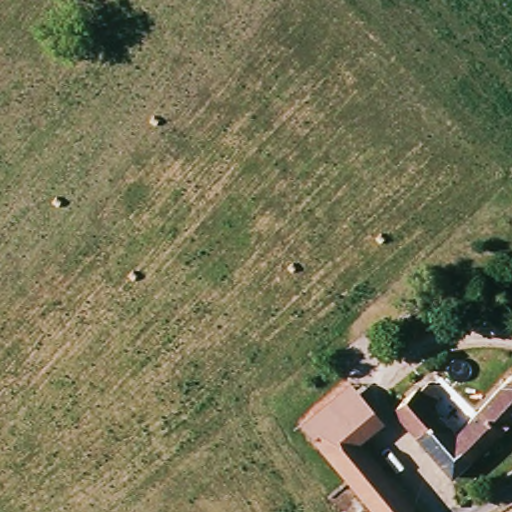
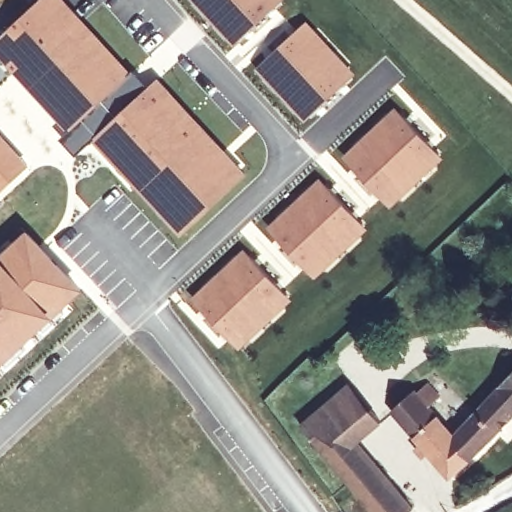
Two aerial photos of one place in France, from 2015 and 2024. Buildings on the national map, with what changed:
new [(217,139),(248,173),(181,232),(93,139),(77,155),(61,138),(69,131),(16,72),(0,56),(0,34),(38,0),(66,0),(134,71),(148,85),(158,76),(217,139)]
new [(236,43),(195,0),(284,0),(236,43)]
new [(307,19),(355,75),(305,119),(256,66),(307,19)]
new [(395,105),(443,159),(390,209),(341,157),(395,105)]
new [(29,165),(0,191),(0,133),(29,165)]
new [(320,176),(367,229),(313,280),(267,226),(320,176)]
new [(30,227),(85,288),(16,355),(0,371),(0,254),(30,227)]
new [(245,247),(292,300),(238,350),(201,308),(196,313),(185,302),(245,247)]
unchanged [(465,420),(512,372),(512,415),(484,440),(465,420)]
unchanged [(410,390),(412,393),(428,381),(445,402),(435,411),(454,431),(465,420),(484,440),(480,445),(448,476),(387,412),(410,390)]
unchanged [(382,421),(358,441),(413,507),(408,512),(378,512),(302,423),(350,385),(382,421)]

